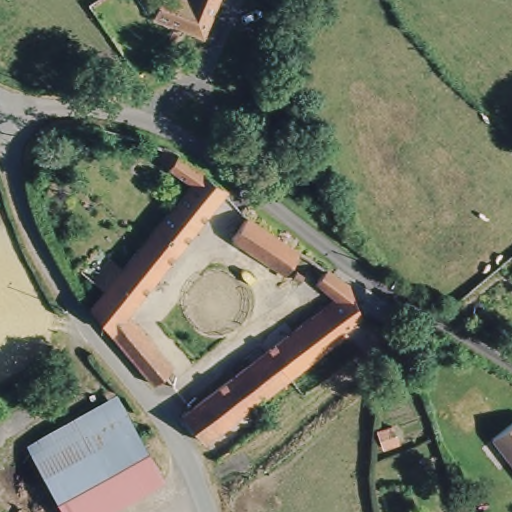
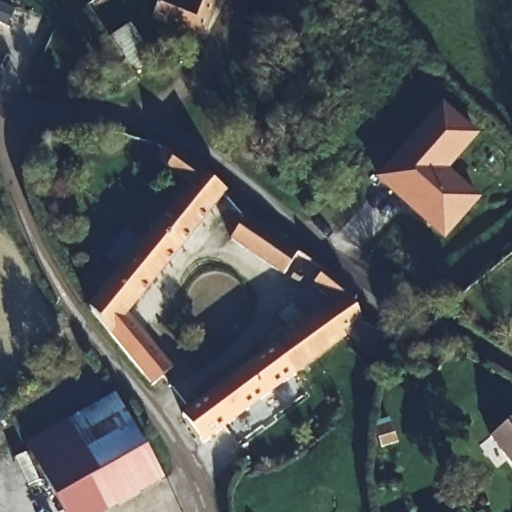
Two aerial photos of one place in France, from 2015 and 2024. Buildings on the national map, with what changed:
unchanged [(198,39),(148,16),(155,0),(184,0),(186,1),(186,0),(216,0),(211,11),(198,39)]
new [(6,26),(0,24),(0,3),(15,10),(6,26)]
new [(131,24),(154,58),(133,72),(110,37),(131,24)]
new [(375,179),(442,101),(480,134),(450,169),(482,197),(444,240),(375,179)]
unchanged [(133,363),(88,309),(88,308),(101,292),(90,282),(107,260),(119,270),(187,183),(155,158),(162,147),(175,152),(196,170),(223,191),(222,194),(123,316),(170,373),(153,387),(133,363)]
unchanged [(342,283),(354,315),(337,329),(342,335),(293,374),(286,380),(297,395),(270,416),(265,420),(250,402),(246,405),(261,423),(213,461),(175,416),(326,297),(322,294),(325,290),(313,282),(315,277),(304,270),(295,283),(288,278),(298,261),(292,257),(280,273),(226,238),(240,217),(342,283)]
unchanged [(115,396),(153,465),(67,512),(61,512),(24,446),(115,396)]
unchanged [(512,419),(512,451),(497,430),(512,419)]

